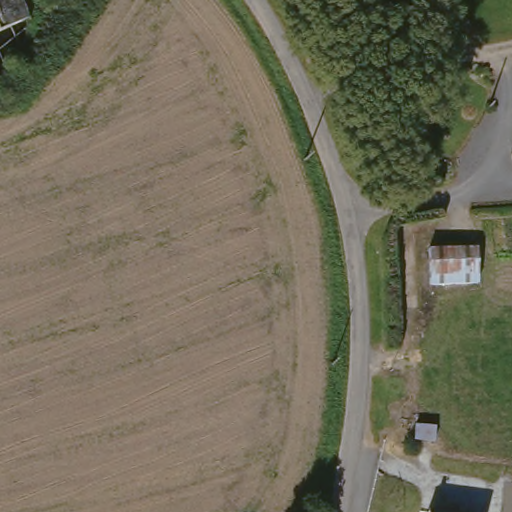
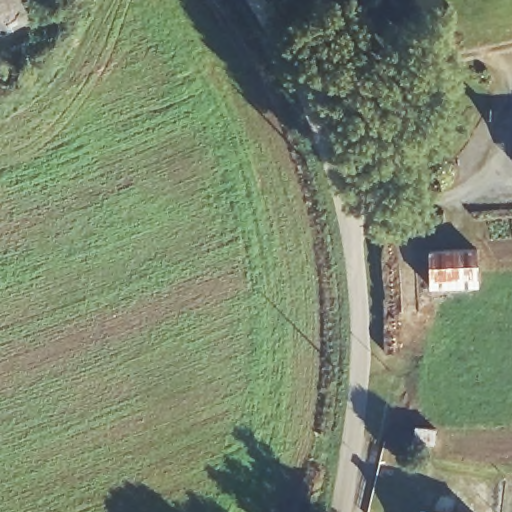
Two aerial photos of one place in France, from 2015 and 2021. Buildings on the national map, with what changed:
unchanged [(0,27),(0,0),(12,0),(20,19),(0,27)]
unchanged [(472,286),(424,287),(425,251),(472,251),(472,286)]

